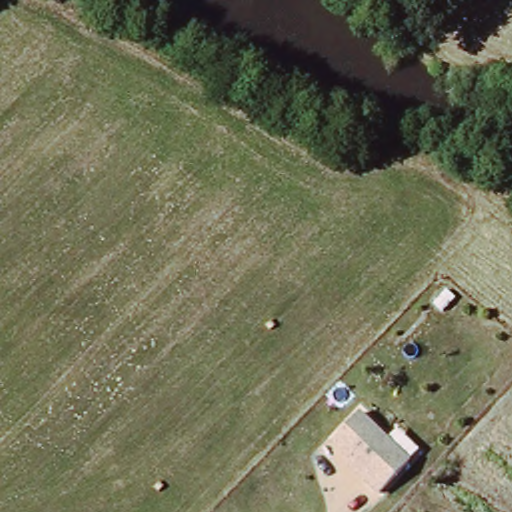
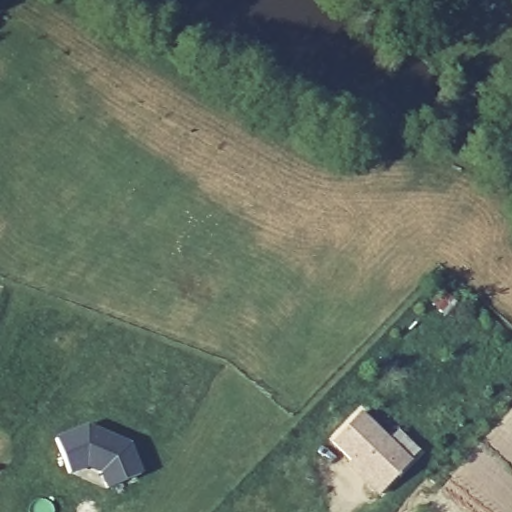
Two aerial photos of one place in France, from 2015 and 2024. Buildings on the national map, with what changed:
unchanged [(333,446),(360,417),(411,463),(383,494),(370,483),(351,466),(353,463),(333,446)]
new [(88,429),(130,446),(142,476),(108,489),(102,474),(87,467),(70,474),(56,441),(88,429)]

